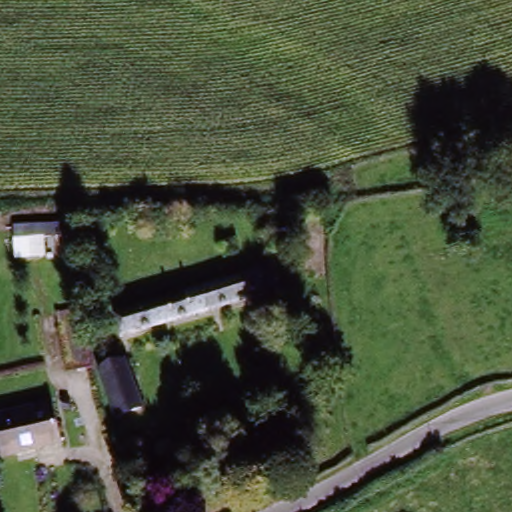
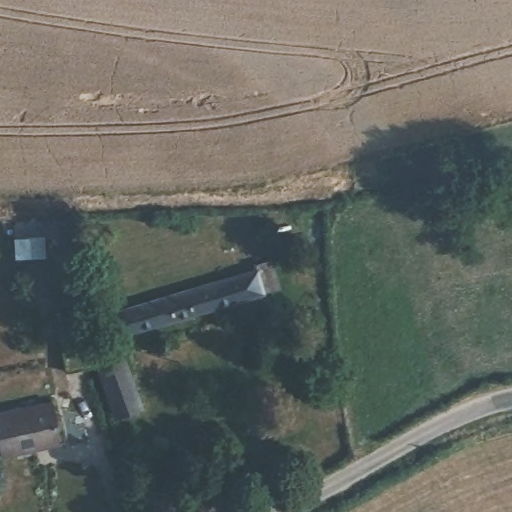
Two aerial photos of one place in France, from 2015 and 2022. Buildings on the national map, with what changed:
unchanged [(52,223),(52,226),(53,244),(30,245),(29,228),(29,224),(52,223)]
unchanged [(258,272),(263,292),(123,333),(117,313),(258,272)]
unchanged [(93,364),(62,369),(56,322),(85,319),(93,364)]
unchanged [(131,360),(145,410),(115,419),(100,369),(131,360)]
unchanged [(60,405),(67,445),(3,457),(0,441),(0,418),(60,405)]

